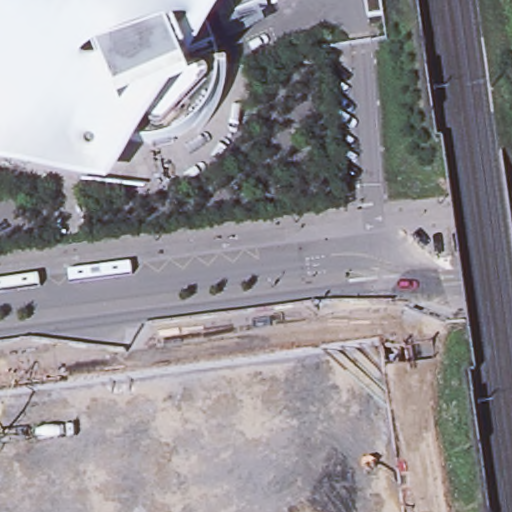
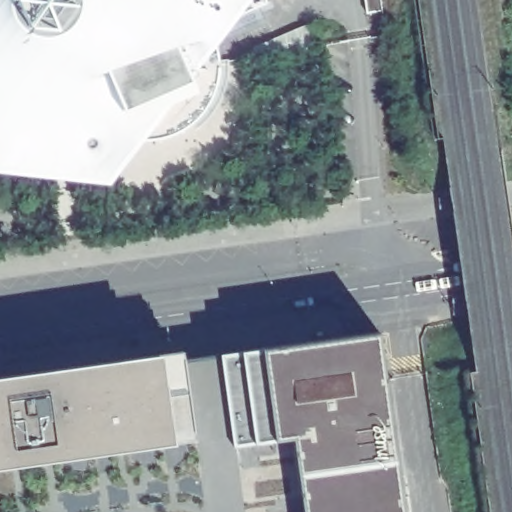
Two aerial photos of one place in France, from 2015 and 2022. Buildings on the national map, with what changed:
unchanged [(176,41),(189,80),(145,140),(136,139),(128,137),(120,135),(113,131),(108,127),(101,122),(94,116),(89,110),(85,102),(81,95),(78,87),(76,79),(76,77),(0,88),(0,0),(206,0),(176,41)]
unchanged [(189,80),(176,41),(206,0),(270,0),(271,2),(226,22),(223,15),(208,21),(213,29),(218,37),(221,46),(223,55),(223,62),(223,74),(221,84),(219,91),(216,100),(211,107),(206,114),(201,120),(194,125),(188,129),(180,134),(172,137),(163,139),(155,140),(145,140),(189,80)]
unchanged [(387,11),(371,13),(369,0),(385,0),(387,11)]
unchanged [(93,131),(95,131),(96,131),(98,131),(99,132),(101,132),(102,134),(104,135),(105,136),(106,138),(106,140),(107,141),(107,144),(106,145),(106,147),(105,149),(103,151),(101,152),(99,153),(98,154),(95,154),(93,154),(92,154),(90,152),(88,151),(87,150),(86,148),(85,146),(84,144),(84,141),(85,139),(85,137),(86,136),(88,135),(89,134),(90,132),(92,132),(93,131)]
new [(0,512),(0,375),(160,353),(182,348),(183,357),(263,347),(378,331),(403,512),(0,512)]

